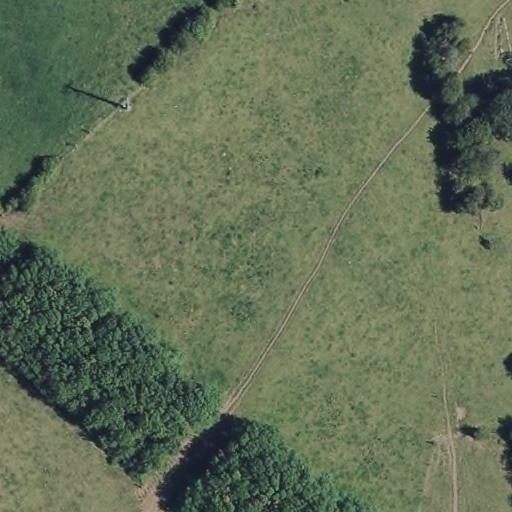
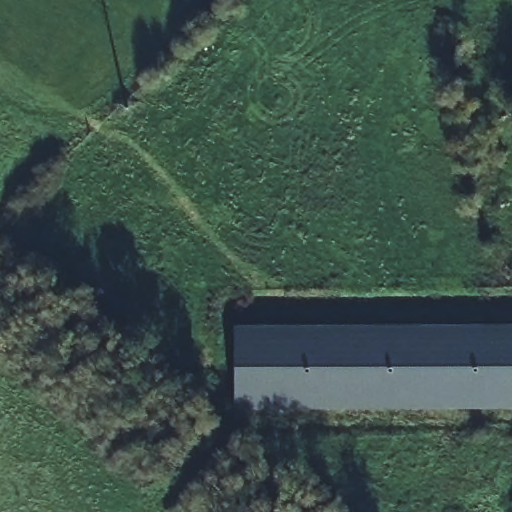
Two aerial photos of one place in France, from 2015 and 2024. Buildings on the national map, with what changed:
new [(512,325),(512,409),(235,409),(235,325),(512,325)]

